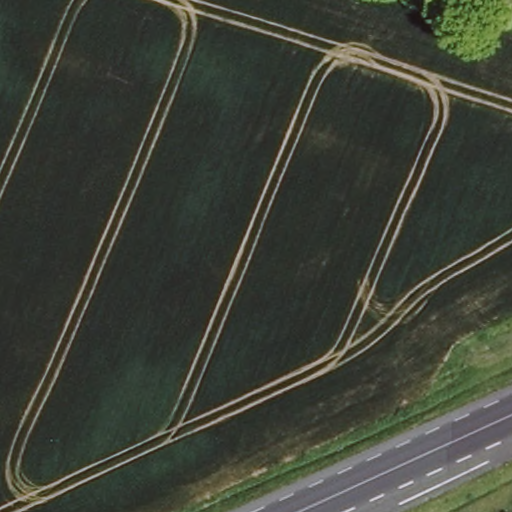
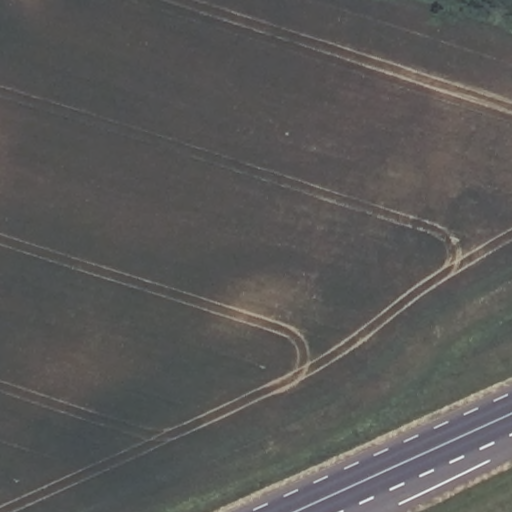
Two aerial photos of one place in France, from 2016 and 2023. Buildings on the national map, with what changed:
[]

